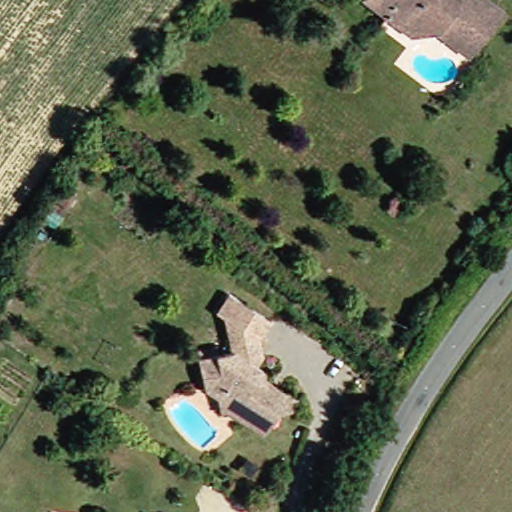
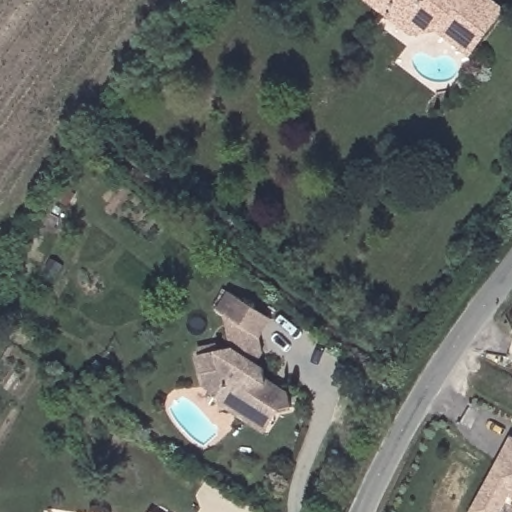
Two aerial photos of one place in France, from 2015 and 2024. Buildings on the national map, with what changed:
unchanged [(440,23),(431,34),(420,39),(371,0),(498,0),(503,4),(471,46),(459,38),(440,23)]
unchanged [(232,344),(227,329),(234,320),(217,307),(231,289),(272,322),(258,338),(232,344)]
unchanged [(246,412),(241,408),(224,412),(222,403),(210,391),(202,359),(235,350),(232,344),(258,338),(267,359),(258,363),(267,378),(270,389),(287,387),(291,403),(278,406),(264,427),(246,412)]
new [(508,496),(500,512),(471,512),(497,464),(502,453),(510,437),(512,438),(512,498),(508,496)]

